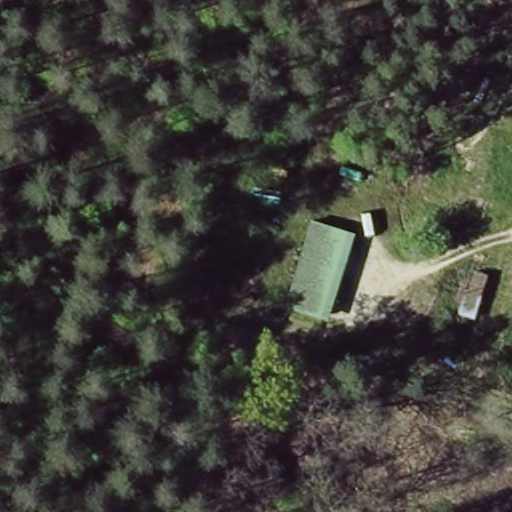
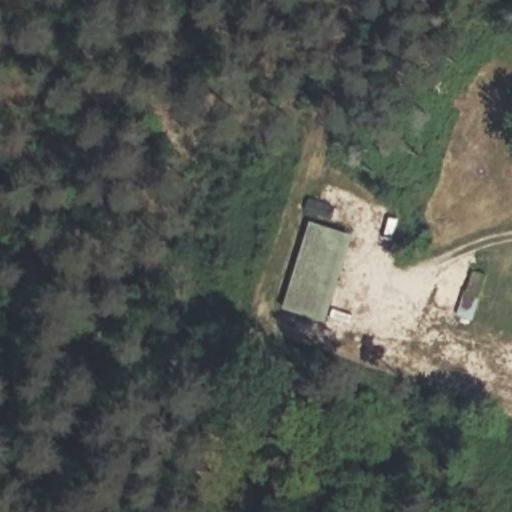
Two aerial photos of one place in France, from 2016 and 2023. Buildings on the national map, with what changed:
unchanged [(346,235),(322,320),(283,310),(305,222),(346,235)]

